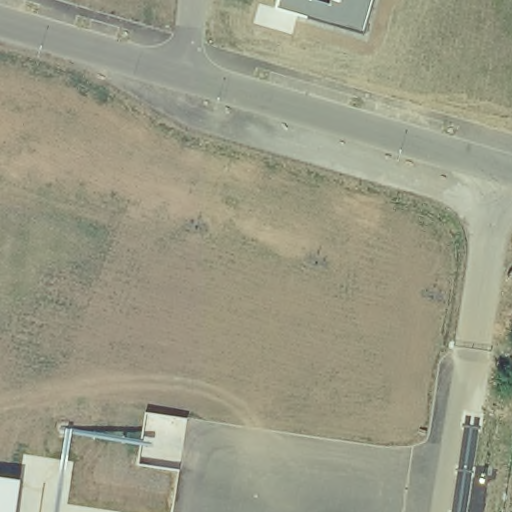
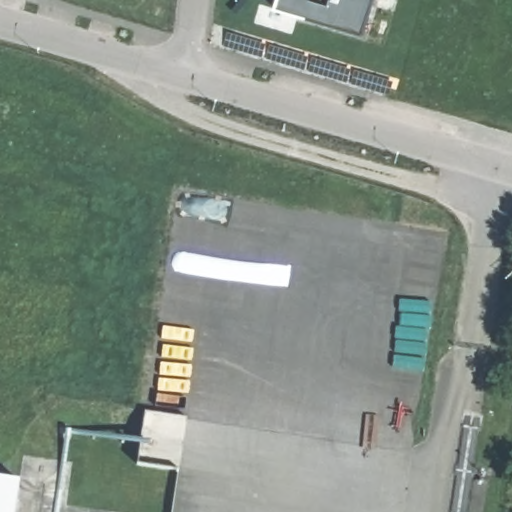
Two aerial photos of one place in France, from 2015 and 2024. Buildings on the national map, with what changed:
unchanged [(277,7),(279,0),(372,0),(363,32),(277,7)]
unchanged [(15,512),(0,512),(0,477),(20,479),(15,512)]

